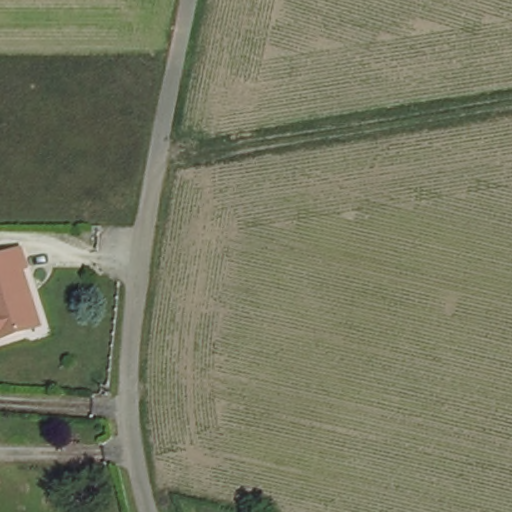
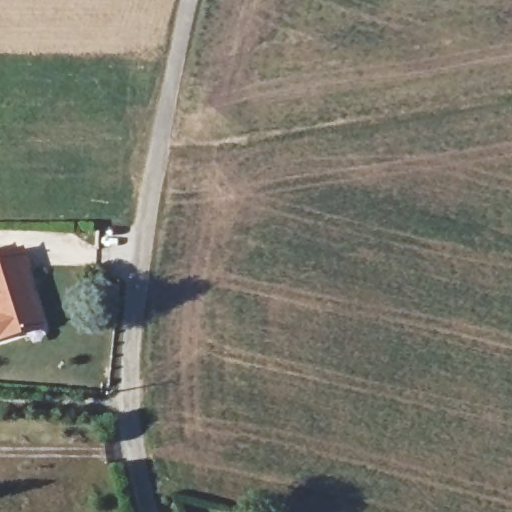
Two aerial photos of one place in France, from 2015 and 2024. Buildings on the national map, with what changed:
unchanged [(22,329),(0,336),(0,254),(22,247),(28,266),(24,268),(39,316),(20,322),(22,329)]

